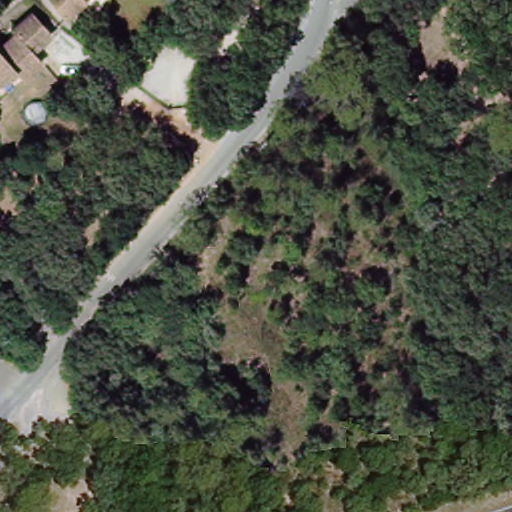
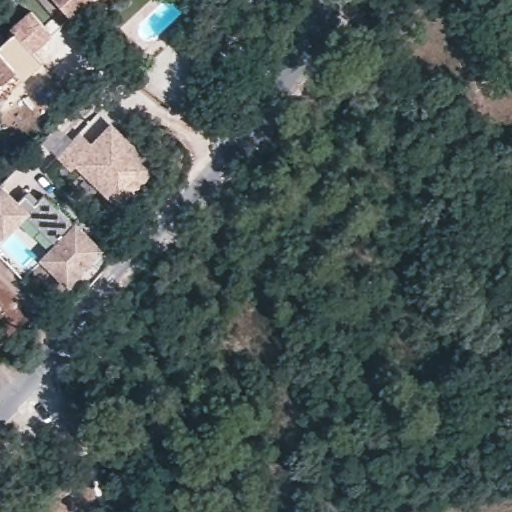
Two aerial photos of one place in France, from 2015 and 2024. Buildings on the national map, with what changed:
unchanged [(64,0),(88,0),(77,12),(64,0)]
unchanged [(60,29),(42,48),(52,58),(35,77),(26,68),(24,71),(20,75),(15,78),(11,79),(6,79),(1,79),(0,79),(0,42),(7,48),(22,32),(19,28),(38,9),(60,29)]
new [(118,205),(75,163),(70,168),(58,156),(80,133),(91,143),(111,121),(157,168),(118,205)]
new [(66,284),(40,259),(55,242),(27,215),(2,239),(0,236),(0,187),(2,185),(19,202),(25,195),(35,204),(45,194),(75,223),(75,222),(101,249),(66,284)]

